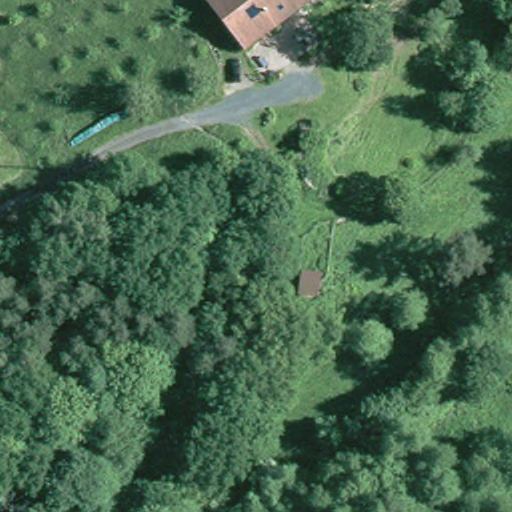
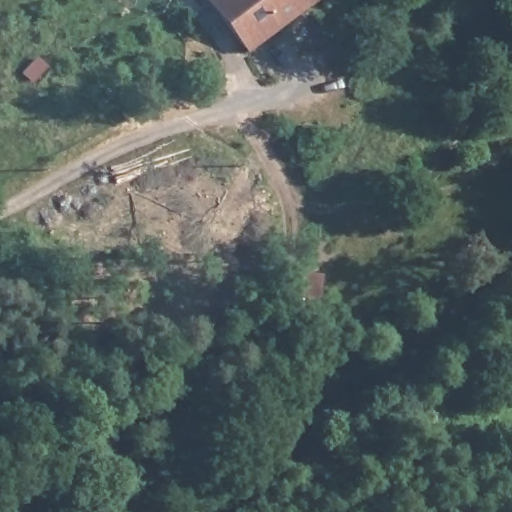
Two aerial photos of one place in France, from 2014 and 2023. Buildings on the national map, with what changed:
unchanged [(207,0),(208,0),(313,0),(250,53),(207,0)]

